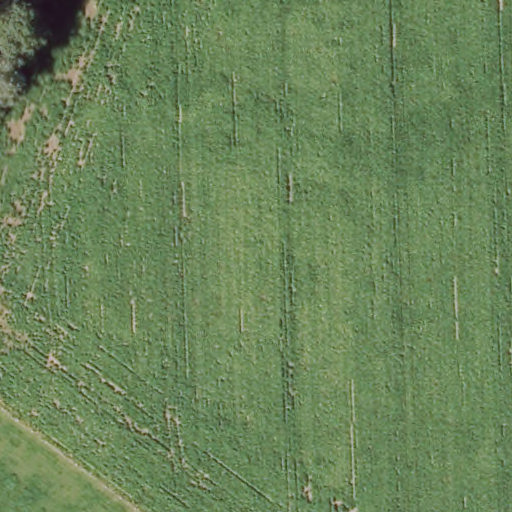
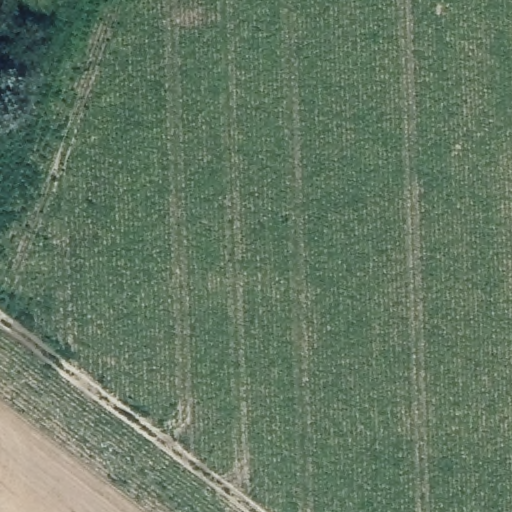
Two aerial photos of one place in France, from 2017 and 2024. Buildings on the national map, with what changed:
[]

